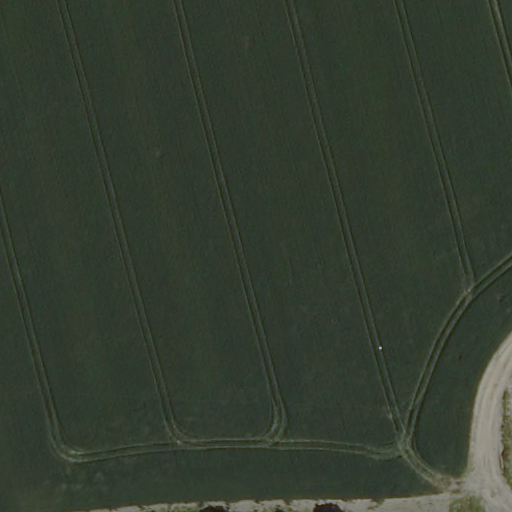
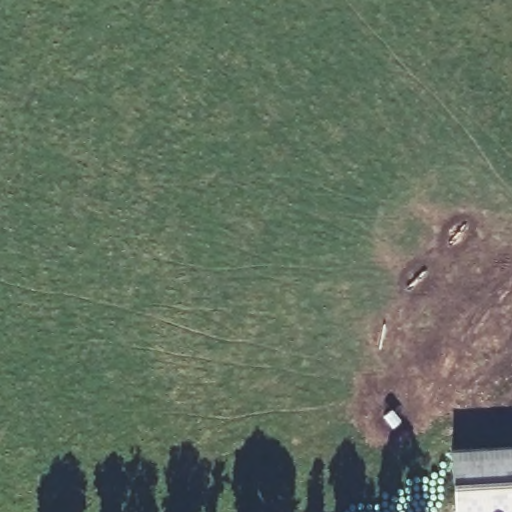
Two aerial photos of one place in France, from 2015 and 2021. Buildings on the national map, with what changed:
new [(452,450),(512,447),(512,512),(456,512),(452,450)]

